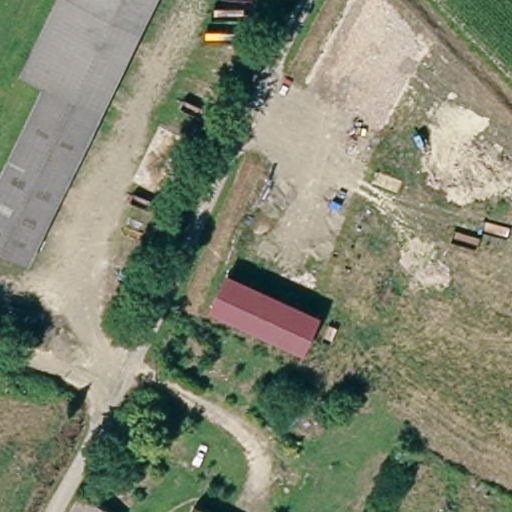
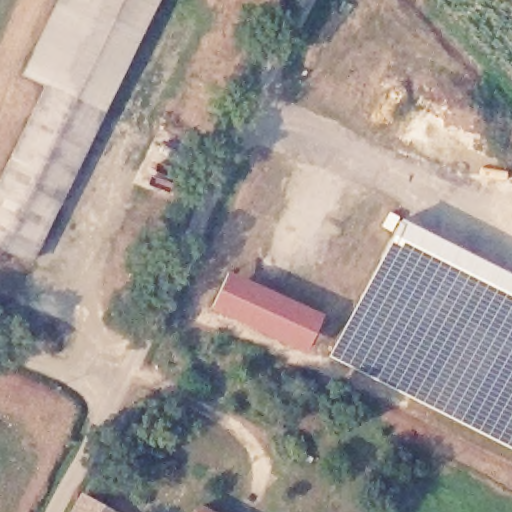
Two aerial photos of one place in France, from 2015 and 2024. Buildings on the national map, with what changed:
unchanged [(0,251),(0,190),(49,90),(25,78),(63,0),(160,0),(31,266),(0,251)]
new [(512,448),(328,356),(398,219),(512,276),(512,448)]
unchanged [(322,316),(305,354),(211,309),(230,272),(322,316)]
unchanged [(76,512),(82,501),(104,512),(76,512)]
unchanged [(206,512),(196,512),(199,508),(206,512)]

